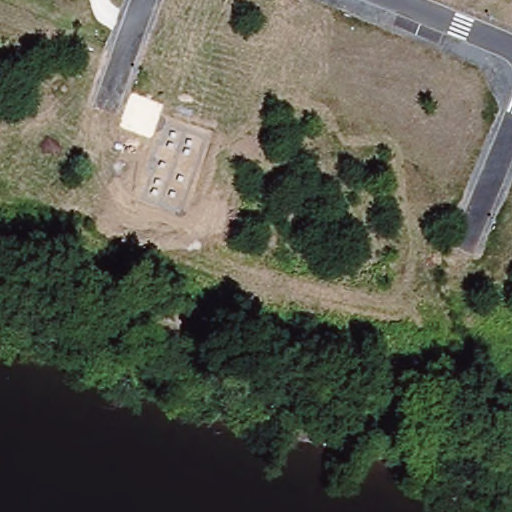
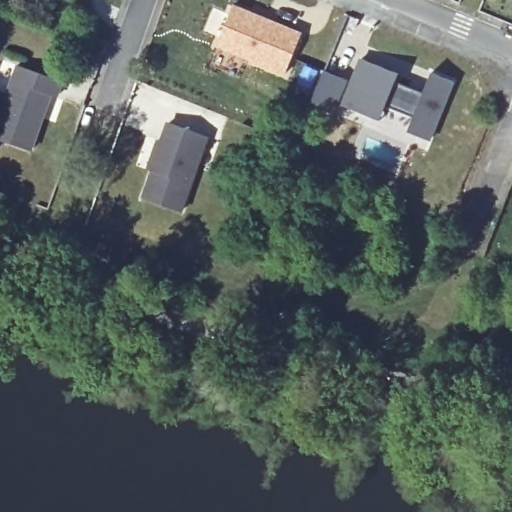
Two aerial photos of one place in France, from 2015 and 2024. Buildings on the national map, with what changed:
new [(232,4),(302,32),(283,78),(214,47),(232,4)]
new [(357,116),(340,109),(358,61),(395,76),(392,85),(420,96),(428,76),(450,84),(425,143),(405,134),(410,120),(382,109),(376,124),(357,116)]
new [(63,80),(57,99),(53,97),(35,151),(0,139),(0,106),(15,64),(63,80)]
new [(321,72),(343,81),(330,114),(308,105),(321,72)]
unchanged [(207,136),(183,212),(141,199),(150,171),(146,170),(156,138),(160,140),(165,122),(207,136)]

